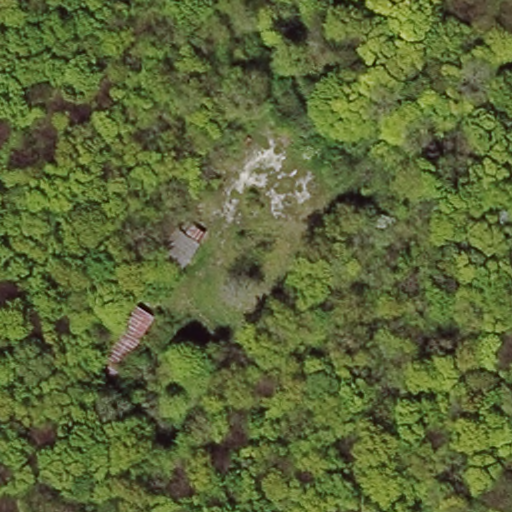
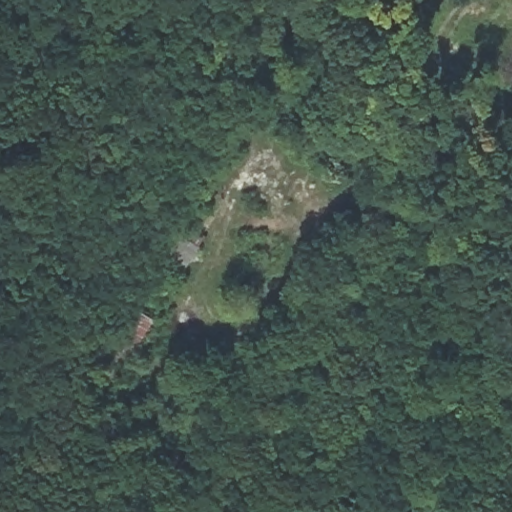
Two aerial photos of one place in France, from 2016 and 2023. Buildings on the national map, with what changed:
unchanged [(186,230),(190,222),(211,238),(189,277),(161,257),(176,229),(186,230)]
unchanged [(155,319),(110,398),(86,382),(132,304),(155,319)]

